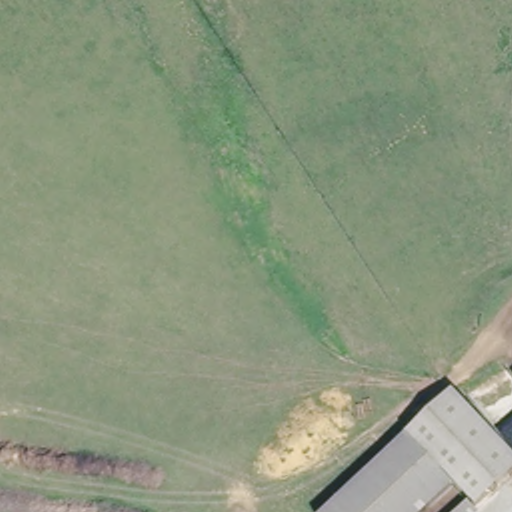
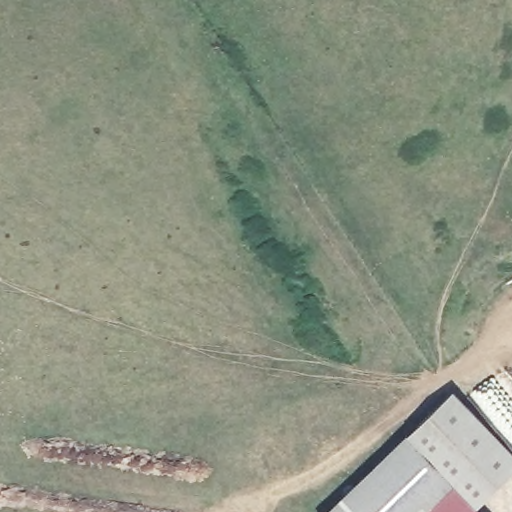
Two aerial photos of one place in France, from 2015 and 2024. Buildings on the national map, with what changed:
unchanged [(512,458),(512,475),(473,509),(466,501),(452,485),(408,434),(456,395),(512,458)]
unchanged [(422,512),(319,512),(408,434),(452,485),(422,512)]
unchanged [(476,512),(454,512),(465,501),(473,509),(476,512)]

